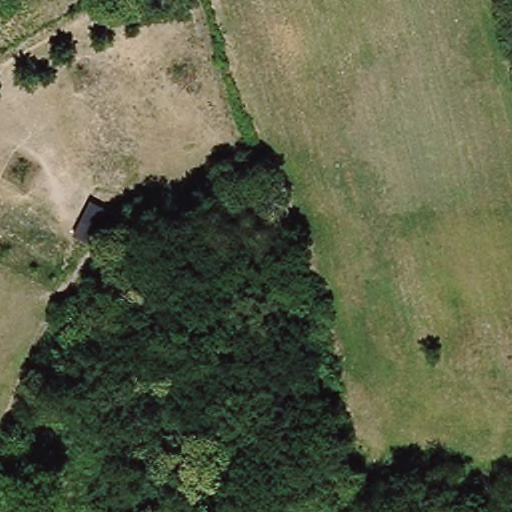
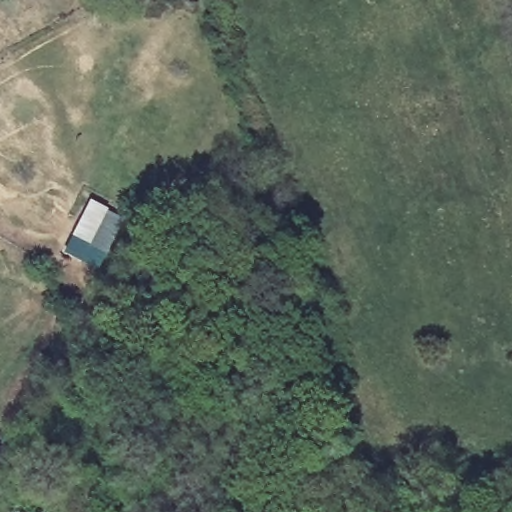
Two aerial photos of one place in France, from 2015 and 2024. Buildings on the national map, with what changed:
new [(125,220),(105,255),(88,247),(82,258),(66,249),(91,202),(125,220)]

